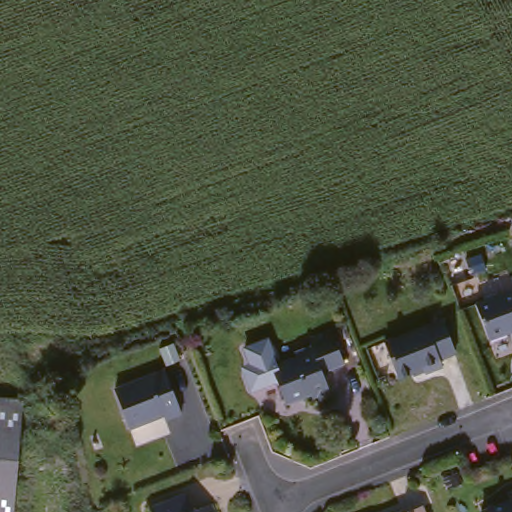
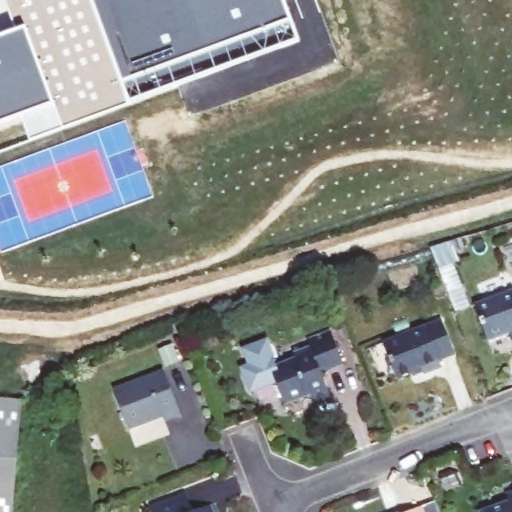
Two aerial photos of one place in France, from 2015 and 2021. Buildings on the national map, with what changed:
new [(0,142),(0,0),(282,0),(293,30),(0,142)]
unchanged [(471,311),(483,307),(511,296),(512,297),(512,347),(510,348),(506,338),(494,342),(484,346),(471,311)]
unchanged [(438,370),(440,375),(417,383),(415,378),(393,386),(393,384),(380,352),(438,331),(450,365),(438,370)]
unchanged [(340,375),(327,380),(322,391),(328,404),(310,411),(308,405),(284,414),(269,377),(288,369),(286,365),(305,357),(303,350),(327,341),(340,375)]
unchanged [(174,424),(158,429),(156,422),(139,428),(140,430),(123,436),(109,397),(159,380),(174,424)]
unchanged [(8,512),(0,512),(0,411),(18,413),(8,512)]
unchanged [(50,436),(46,420),(61,416),(65,432),(50,436)]
unchanged [(502,510),(499,503),(512,498),(512,512),(496,512),(502,510)]
unchanged [(188,502),(191,512),(161,512),(188,502)]
unchanged [(423,510),(423,512),(417,512),(423,510)]

